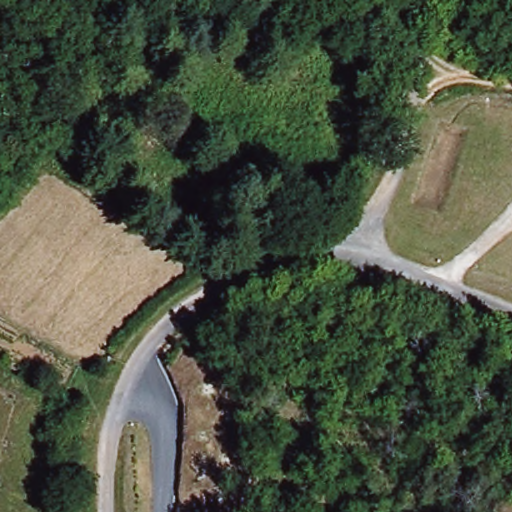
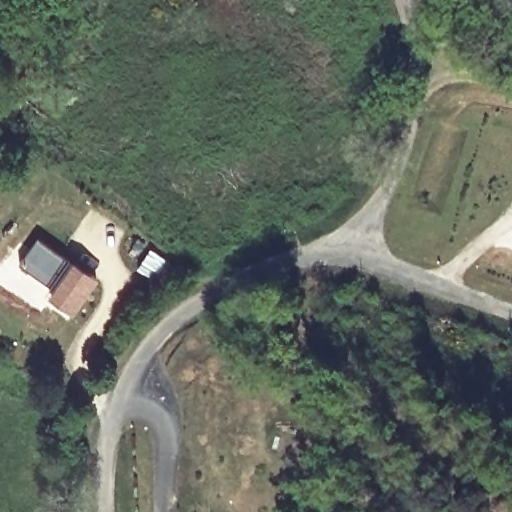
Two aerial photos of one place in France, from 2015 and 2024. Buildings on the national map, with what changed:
new [(73,313),(48,293),(52,288),(20,264),(38,239),(72,264),(75,259),(100,279),(73,313)]

